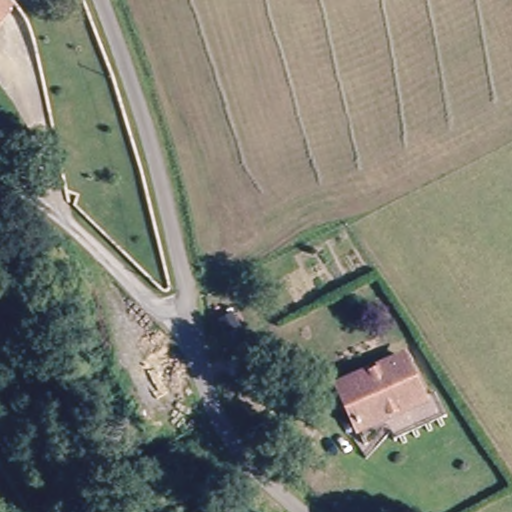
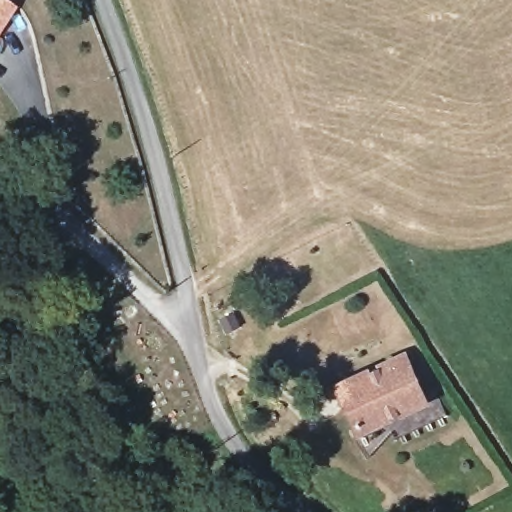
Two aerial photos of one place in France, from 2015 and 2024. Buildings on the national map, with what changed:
unchanged [(0,27),(0,5),(11,14),(0,27)]
unchanged [(404,356),(425,395),(358,435),(339,395),(404,356)]

